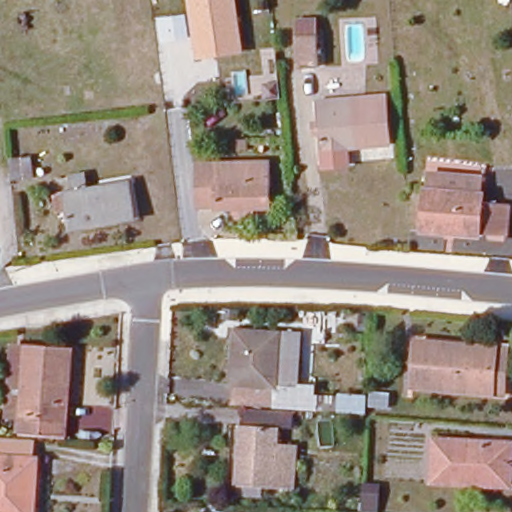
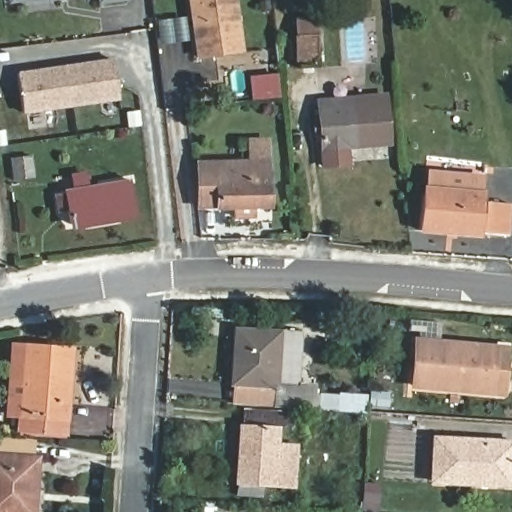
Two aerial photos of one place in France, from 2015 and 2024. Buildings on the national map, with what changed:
new [(7,0),(51,0),(7,5),(7,0)]
new [(99,0),(130,0),(99,4),(99,0)]
unchanged [(195,61),(186,0),(238,0),(246,53),(195,61)]
unchanged [(313,23),(314,71),(294,72),(293,24),(313,23)]
new [(24,115),(18,74),(113,59),(119,101),(24,115)]
unchanged [(383,101),(387,148),(343,151),(345,169),(320,171),(314,105),(383,101)]
unchanged [(18,160),(21,183),(9,184),(7,161),(18,160)]
unchanged [(264,161),(265,204),(224,205),(195,204),(195,163),(264,161)]
unchanged [(507,204),(504,235),(476,234),(476,235),(418,230),(421,187),(424,188),(426,172),(443,174),(482,178),(481,193),(480,202),(507,204)]
unchanged [(81,178),(84,190),(125,184),(131,217),(67,228),(61,194),(70,193),(68,180),(81,178)]
unchanged [(228,402),(230,384),(233,329),(276,332),(276,329),(297,331),(294,388),(271,387),(270,404),(228,402)]
unchanged [(497,349),(496,369),(506,371),(506,393),(415,384),(418,341),(497,349)]
unchanged [(71,354),(65,437),(21,434),(22,419),(9,418),(14,367),(26,368),(28,351),(71,354)]
unchanged [(320,391),(366,396),(364,415),(316,414),(320,391)]
unchanged [(276,427),(275,446),(293,447),(290,489),(234,484),(237,424),(276,427)]
unchanged [(509,448),(508,485),(471,484),(470,477),(462,477),(461,487),(429,486),(431,444),(509,448)]
unchanged [(34,462),(30,512),(0,512),(0,459),(34,462)]

